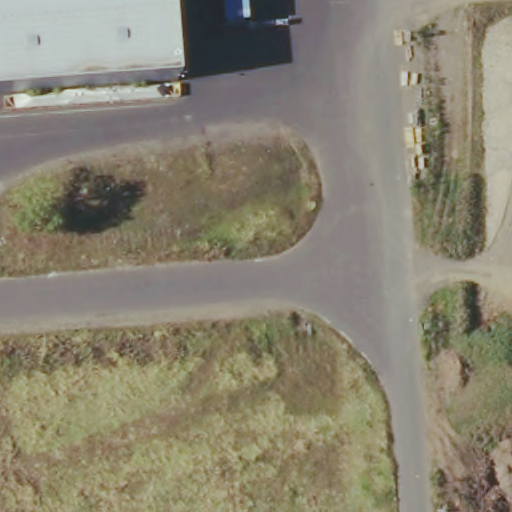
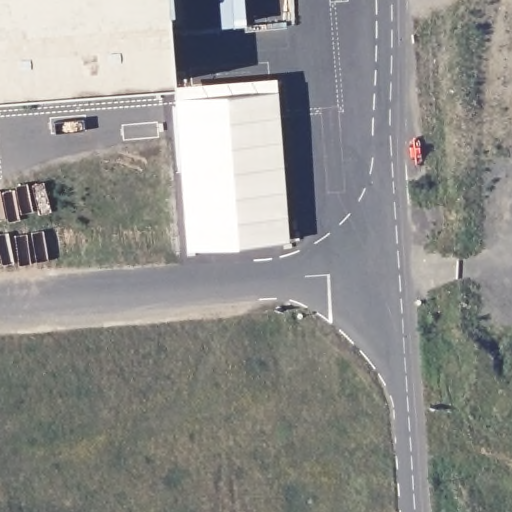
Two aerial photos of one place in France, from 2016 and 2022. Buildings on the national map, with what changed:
unchanged [(178,84),(0,97),(0,0),(172,0),(178,84)]
new [(178,84),(277,75),(288,236),(188,246),(178,84)]

